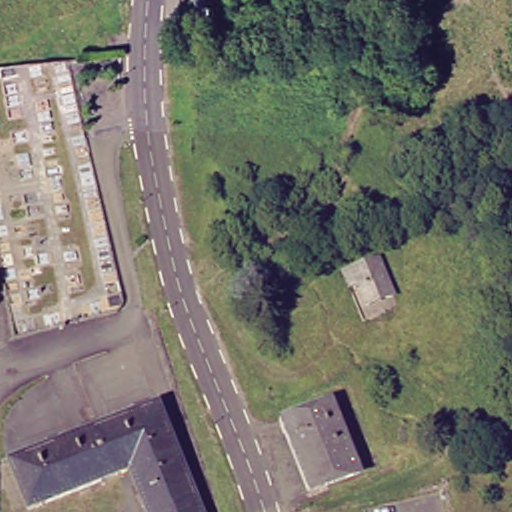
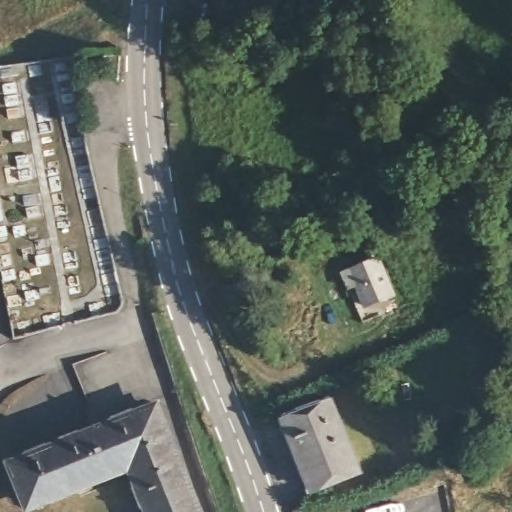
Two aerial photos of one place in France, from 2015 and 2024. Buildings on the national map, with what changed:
unchanged [(196,6),(196,0),(213,0),(213,6),(196,6)]
unchanged [(398,289),(371,299),(375,310),(361,316),(350,285),(345,271),(361,263),(384,253),(398,289)]
unchanged [(366,473),(317,490),(291,417),(338,398),(366,473)]
unchanged [(134,473),(37,512),(30,512),(12,467),(160,409),(202,512),(149,512),(134,473)]

